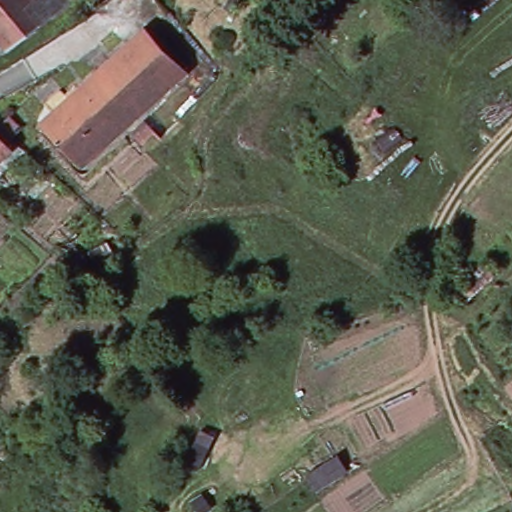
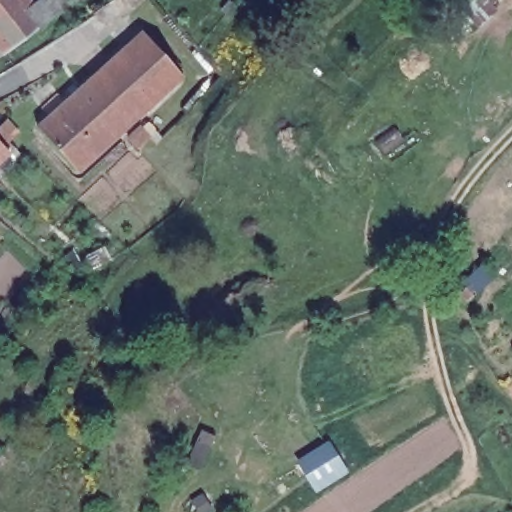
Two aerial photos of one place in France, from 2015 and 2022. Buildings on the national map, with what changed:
unchanged [(25,0),(28,4),(33,0),(58,0),(62,6),(44,22),(3,57),(0,58),(0,0),(25,0)]
unchanged [(483,0),(498,0),(490,7),(483,0)]
unchanged [(89,159),(76,171),(35,128),(120,47),(125,42),(126,41),(139,29),(180,70),(169,81),(160,88),(105,143),(114,153),(97,168),(89,159)]
unchanged [(3,120),(8,115),(32,137),(15,154),(10,147),(7,150),(0,158),(0,123),(3,120)]

